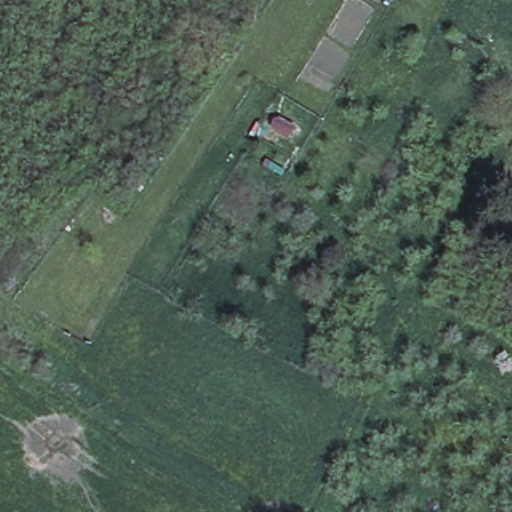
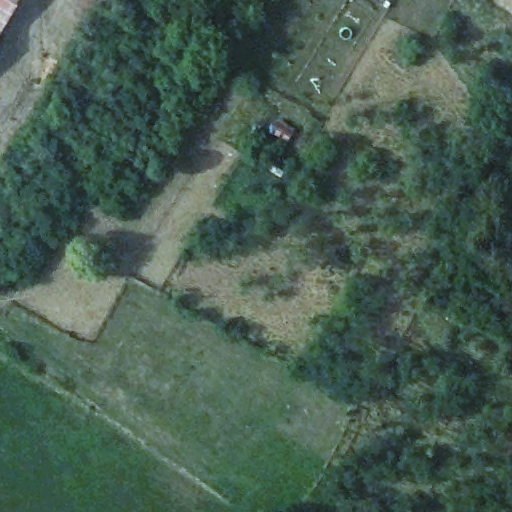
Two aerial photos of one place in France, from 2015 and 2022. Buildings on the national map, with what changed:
new [(0,42),(0,0),(26,0),(0,42)]

